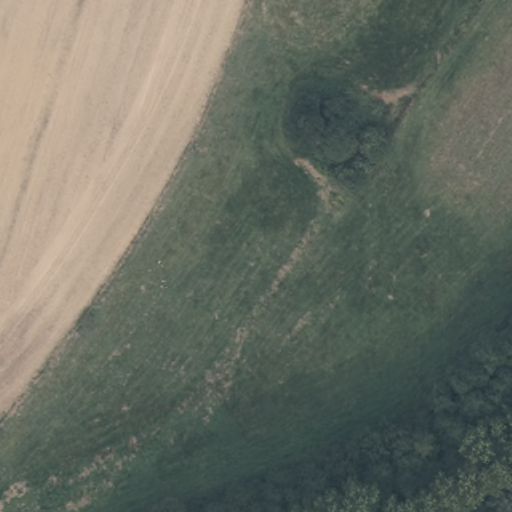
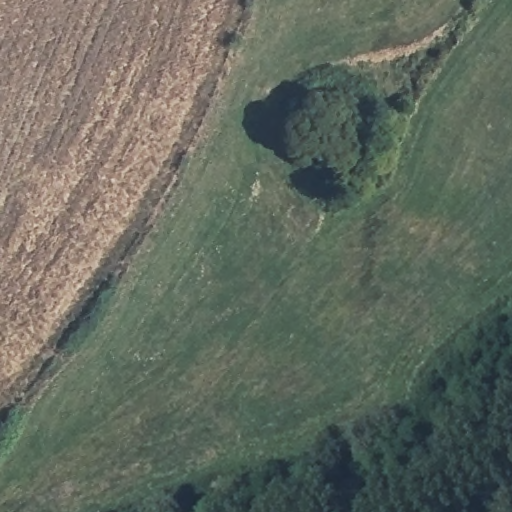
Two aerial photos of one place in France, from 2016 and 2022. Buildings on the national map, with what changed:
[]

